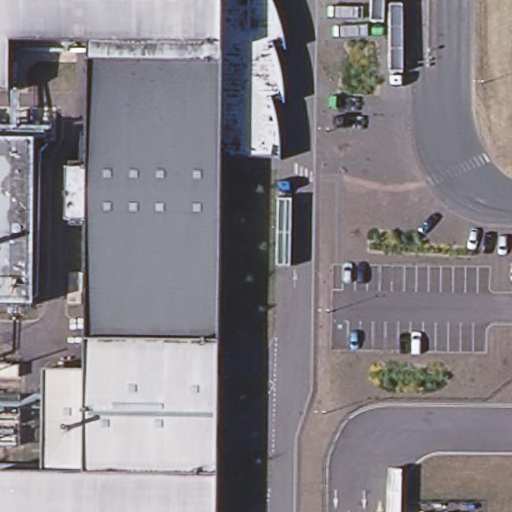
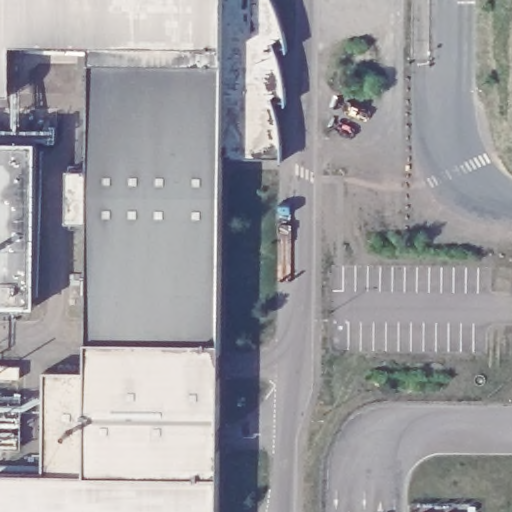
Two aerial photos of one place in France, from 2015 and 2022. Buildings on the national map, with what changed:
unchanged [(44,474),(45,373),(87,373),(85,222),(67,221),(69,169),(90,166),(90,45),(12,45),(10,90),(0,90),(0,0),(272,0),(282,27),(287,49),(273,47),(283,68),(287,103),(272,103),(282,133),(284,159),(233,158),(233,154),(224,155),(222,339),(219,512),(0,512),(0,475),(44,474)]
unchanged [(38,140),(35,308),(0,308),(0,141),(38,140)]

